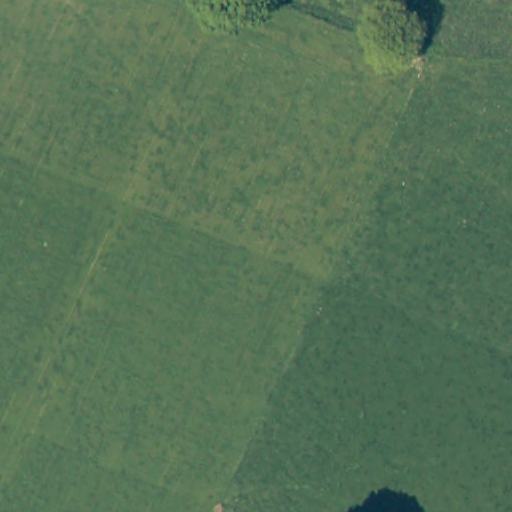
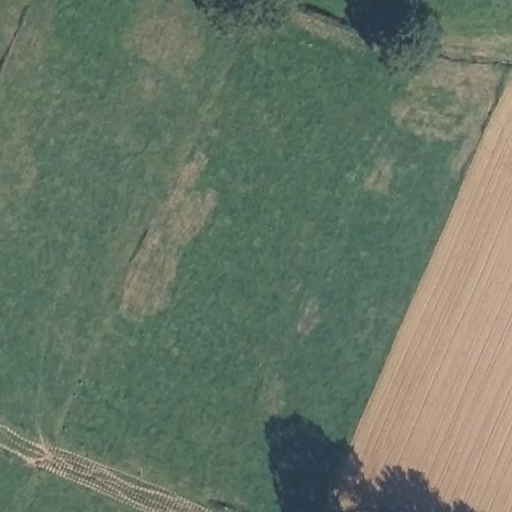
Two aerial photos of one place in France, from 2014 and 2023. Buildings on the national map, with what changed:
[]

